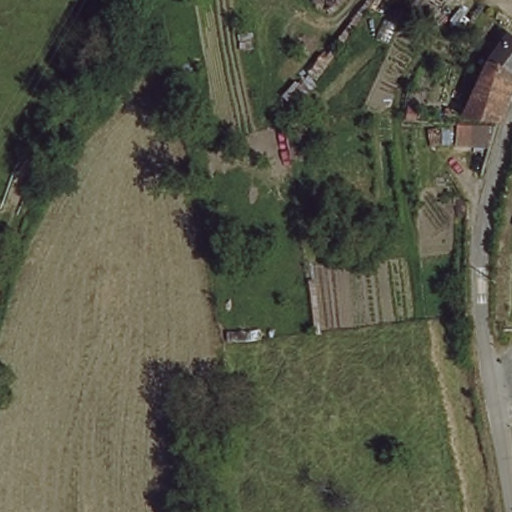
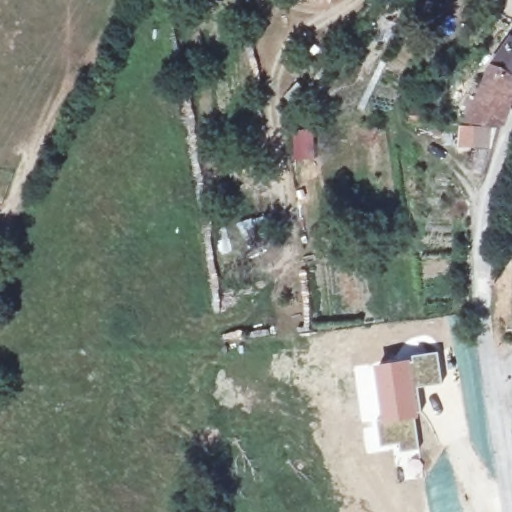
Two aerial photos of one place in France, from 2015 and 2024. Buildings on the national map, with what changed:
unchanged [(498,113),(464,108),(482,64),(509,30),(512,32),(512,67),(509,71),(498,113)]
unchanged [(473,136),(476,119),(496,121),(491,137),(473,136)]
new [(416,419),(382,424),(381,421),(373,364),(409,357),(438,349),(443,384),(417,388),(421,419),(416,419)]
new [(373,364),(381,421),(376,422),(363,423),(354,367),(373,364)]
new [(381,421),(382,424),(416,419),(419,449),(398,452),(397,445),(379,448),(376,422),(381,421)]

